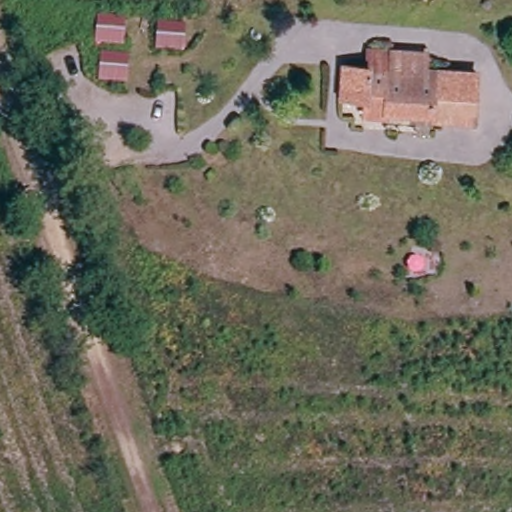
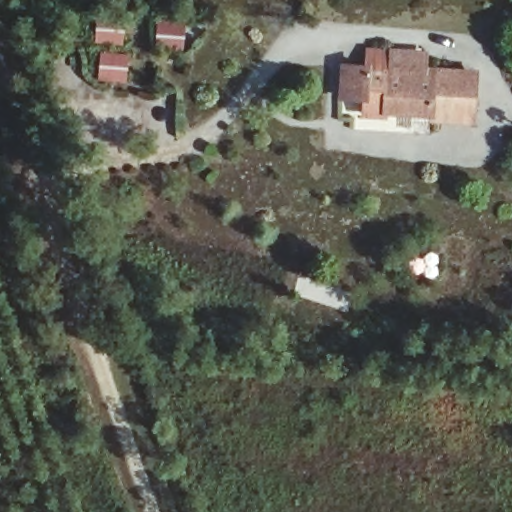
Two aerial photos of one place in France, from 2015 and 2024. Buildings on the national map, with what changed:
unchanged [(434,114),(386,111),(387,93),(363,91),(362,91),(361,100),(341,98),(343,68),(364,68),(365,54),(388,55),(388,70),(475,75),(473,111),(473,121),(436,121),(434,114)]

